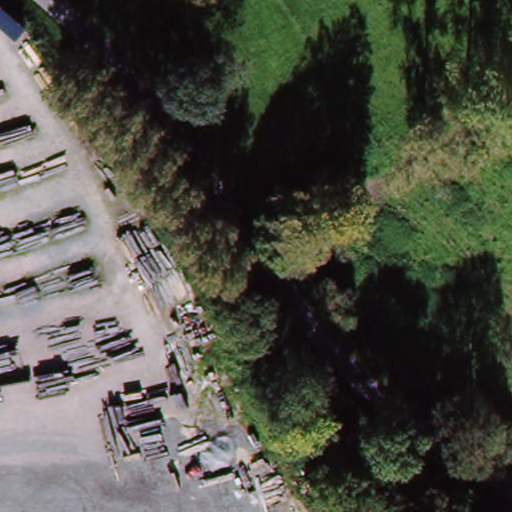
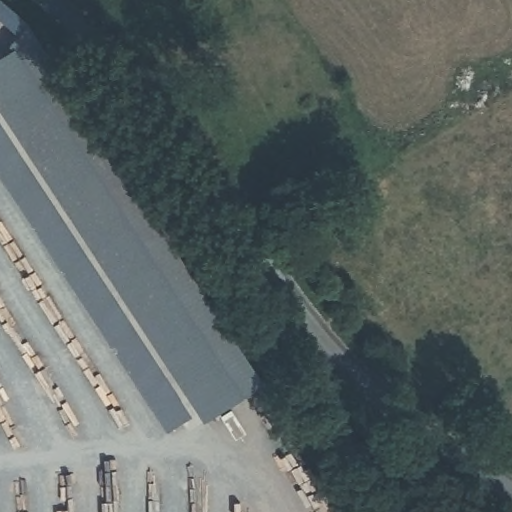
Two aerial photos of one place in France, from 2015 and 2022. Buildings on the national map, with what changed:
new [(10,48),(17,35),(0,20),(0,0),(1,0),(26,22),(263,382),(204,422),(0,113),(0,55),(10,48)]

